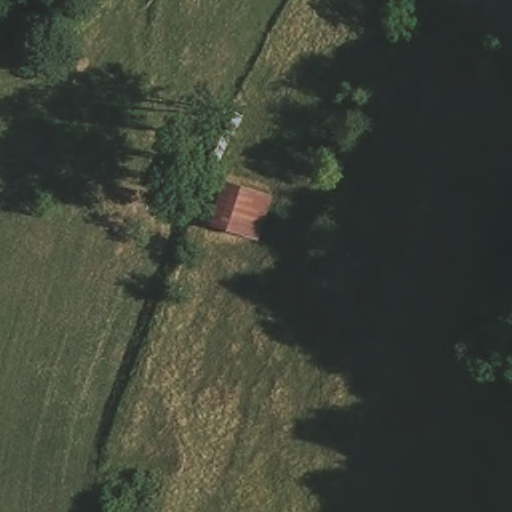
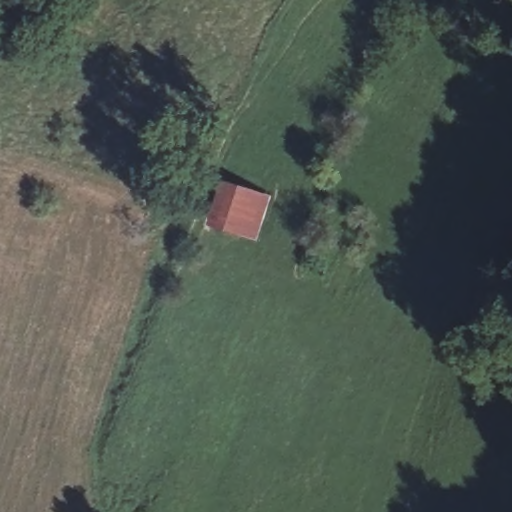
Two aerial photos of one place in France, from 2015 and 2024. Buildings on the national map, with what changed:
unchanged [(272,192),(261,239),(211,225),(227,178),(272,192)]

